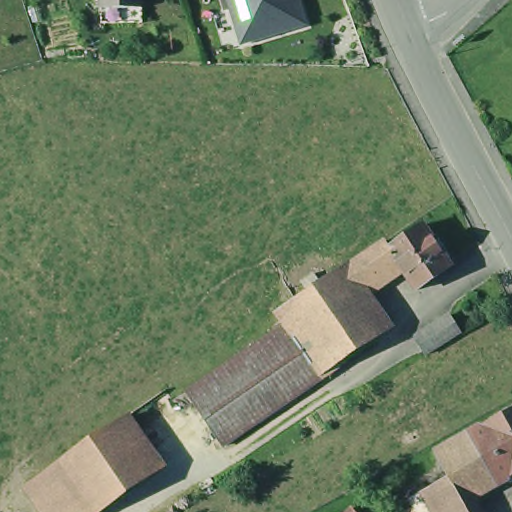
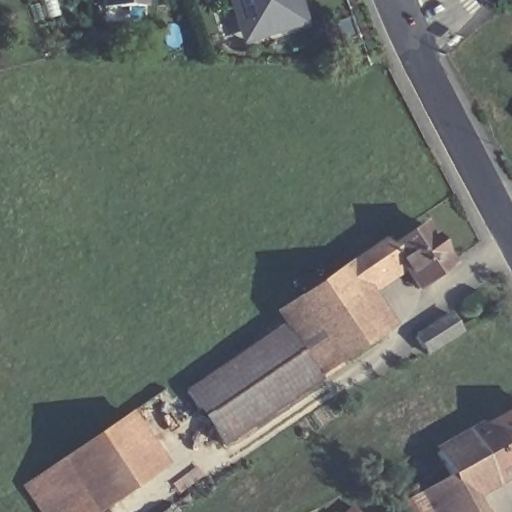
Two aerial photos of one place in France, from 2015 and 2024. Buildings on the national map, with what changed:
unchanged [(99,18),(99,5),(99,0),(138,0),(139,5),(139,18),(99,18)]
unchanged [(305,20),(243,39),(231,0),(298,0),(305,20)]
unchanged [(351,262),(385,239),(389,244),(422,222),(450,263),(417,286),(398,259),(365,282),(351,262)]
unchanged [(337,362),(303,312),(295,300),(335,272),(377,335),(340,360),(337,362)]
unchanged [(303,312),(337,362),(340,360),(343,364),(225,444),(188,390),(303,312)]
unchanged [(425,352),(414,335),(447,313),(459,330),(425,352)]
unchanged [(165,465),(97,512),(42,512),(24,484),(132,408),(165,465)]
unchanged [(427,488),(451,475),(437,450),(485,423),(512,408),(512,472),(488,485),(472,495),(481,512),(440,512),(437,506),(427,488)]
unchanged [(356,512),(345,512),(351,506),(356,512)]

